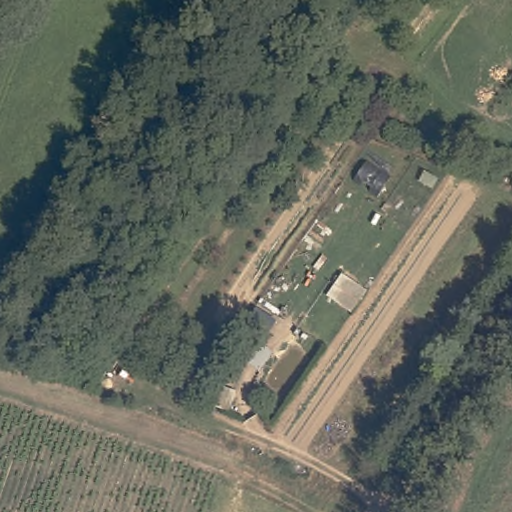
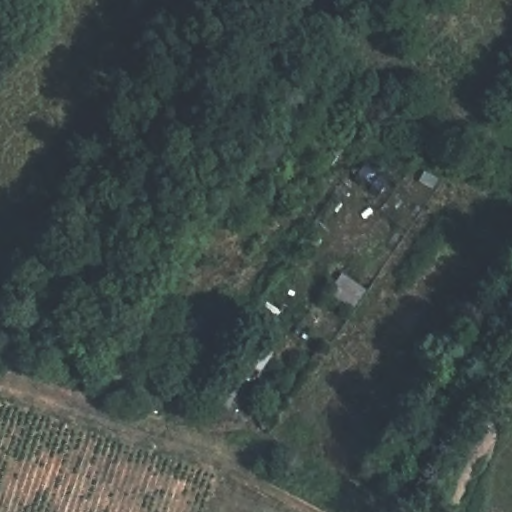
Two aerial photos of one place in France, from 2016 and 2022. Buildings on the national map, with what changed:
unchanged [(229,408),(205,399),(210,383),(235,391),(229,408)]

